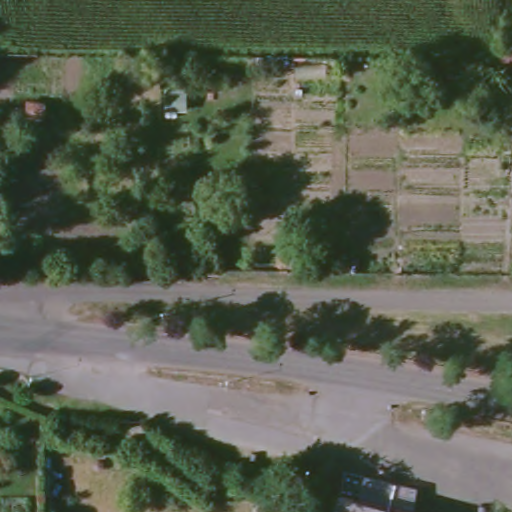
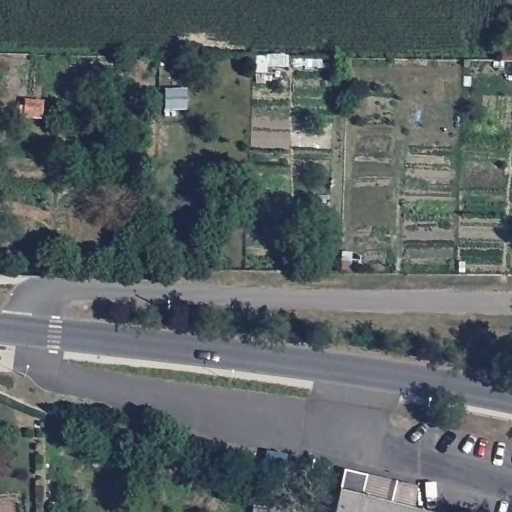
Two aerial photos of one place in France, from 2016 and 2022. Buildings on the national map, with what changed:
unchanged [(2,199),(0,199),(0,176),(2,176),(2,199)]
unchanged [(340,274),(340,264),(353,265),(353,275),(340,274)]
unchanged [(341,498),(343,490),(347,474),(411,490),(409,511),(409,512),(330,512),(333,497),(341,498)]

